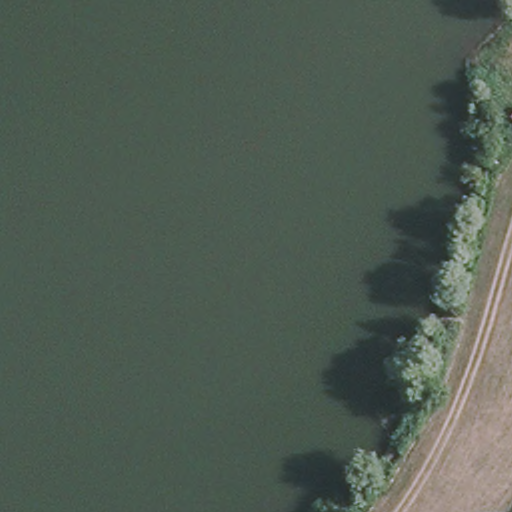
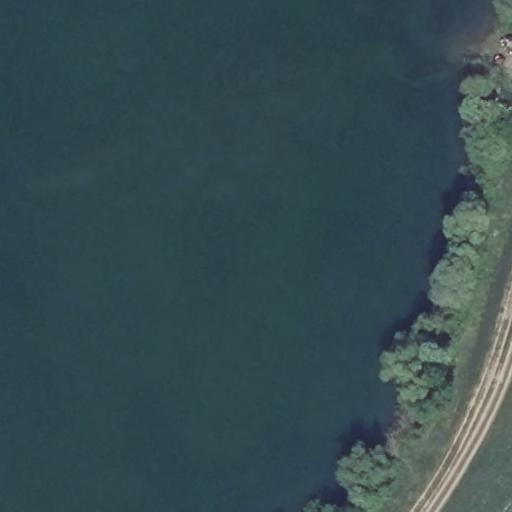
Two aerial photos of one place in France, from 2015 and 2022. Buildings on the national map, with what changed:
unchanged [(511,118),(512,117),(512,119),(511,118)]

